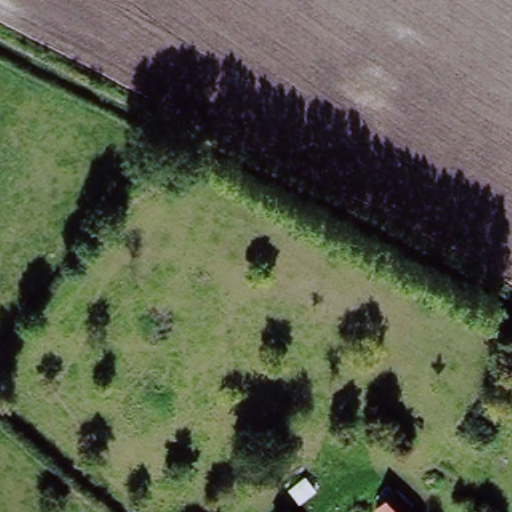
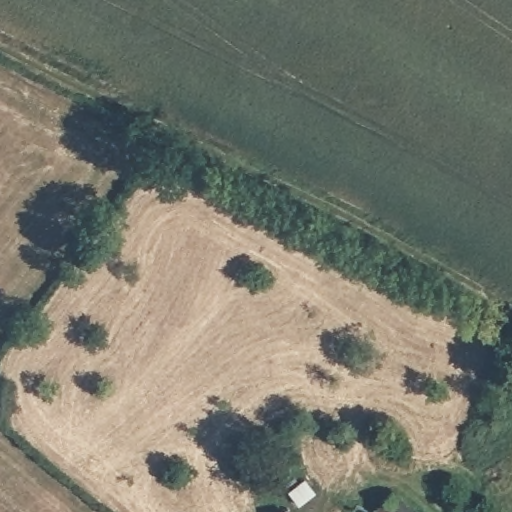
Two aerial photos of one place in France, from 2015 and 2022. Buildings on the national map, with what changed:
unchanged [(402,494),(418,512),(385,512),(384,511),(402,494)]

